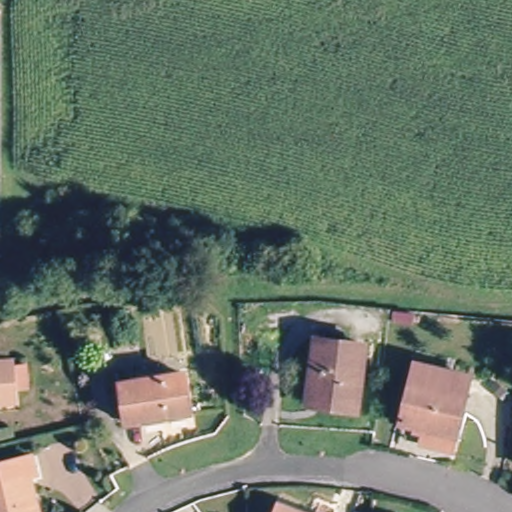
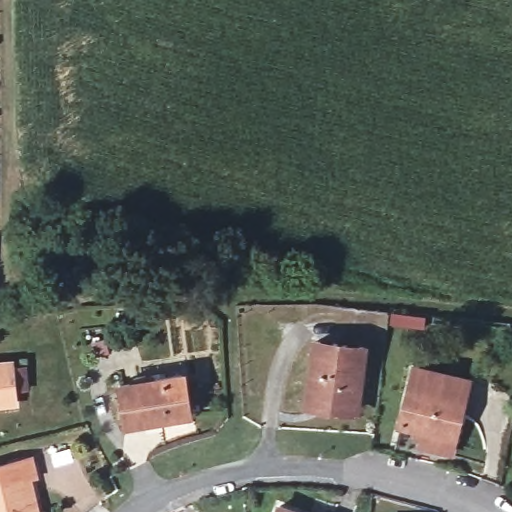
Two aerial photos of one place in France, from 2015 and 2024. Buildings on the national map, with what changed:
unchanged [(315,340),(363,347),(354,410),(306,404),(315,340)]
unchanged [(0,362),(9,361),(10,366),(23,365),(24,386),(11,387),(14,401),(0,403),(0,362)]
unchanged [(410,371),(464,384),(449,443),(395,430),(410,371)]
unchanged [(124,423),(119,384),(181,374),(187,413),(124,423)]
unchanged [(34,475),(28,477),(36,512),(0,512),(0,463),(30,455),(34,475)]
unchanged [(292,512),(270,512),(273,505),(292,512)]

